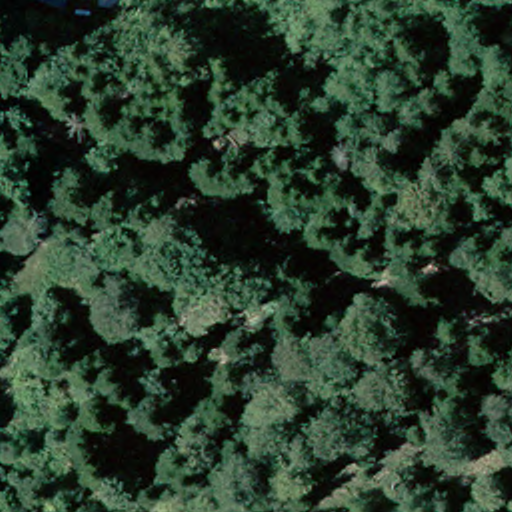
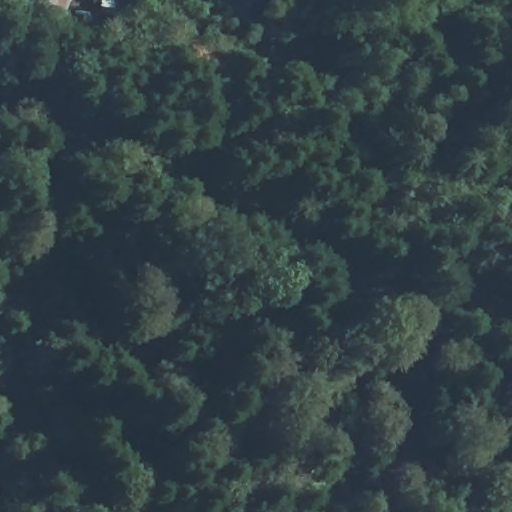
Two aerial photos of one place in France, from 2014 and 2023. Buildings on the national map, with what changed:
unchanged [(162,152),(199,166),(190,183),(152,170),(162,152)]

